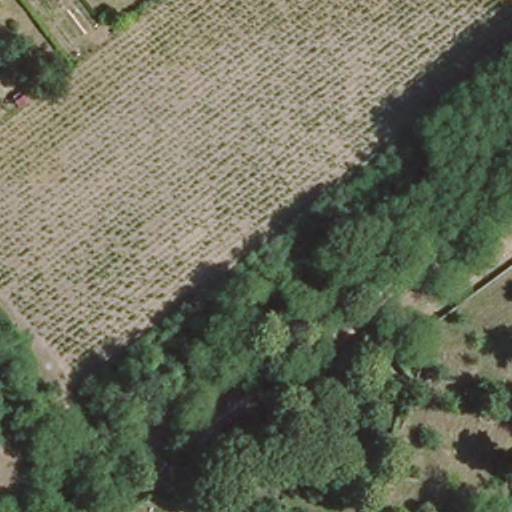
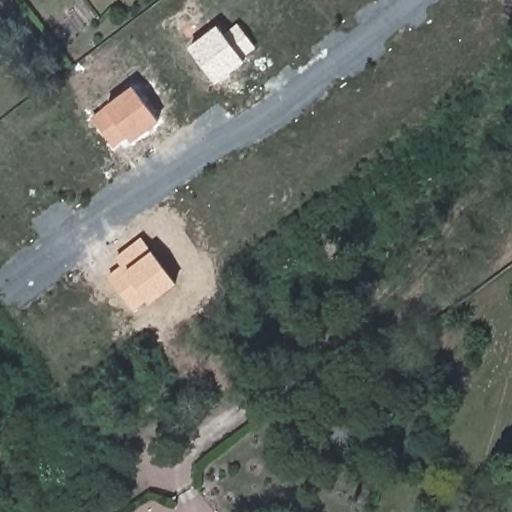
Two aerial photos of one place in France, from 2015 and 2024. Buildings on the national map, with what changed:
new [(189,48),(217,27),(224,34),(237,24),(257,49),(242,59),(245,62),(216,84),(189,48)]
new [(128,139),(114,149),(91,117),(105,107),(133,86),(160,123),(132,144),(128,139)]
new [(150,304),(147,302),(135,312),(108,276),(121,267),(115,258),(142,237),(152,251),(177,284),(150,304)]

